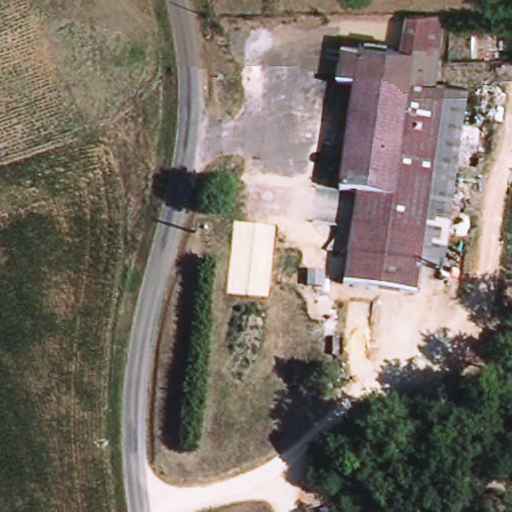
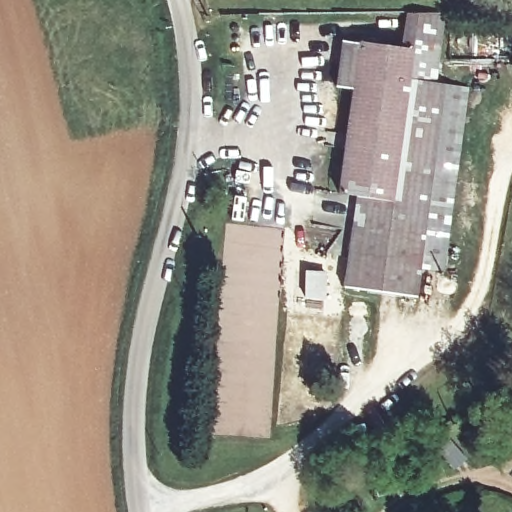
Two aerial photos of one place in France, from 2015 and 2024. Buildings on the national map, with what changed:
unchanged [(340,194),(355,89),(338,88),(345,40),(403,48),(408,14),(446,14),(437,84),(469,87),(444,271),(422,268),(417,298),(345,288),(348,257),(353,228),(357,196),(340,194)]

